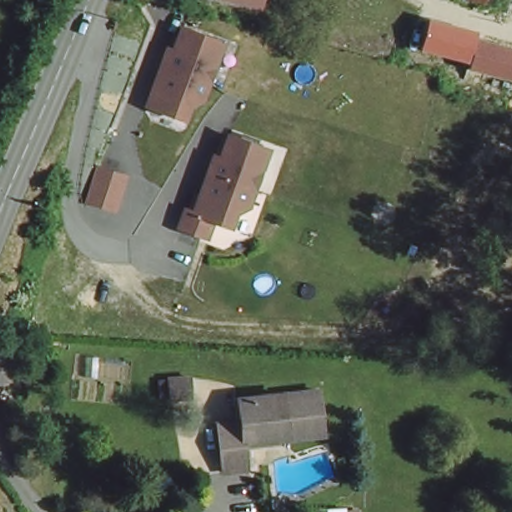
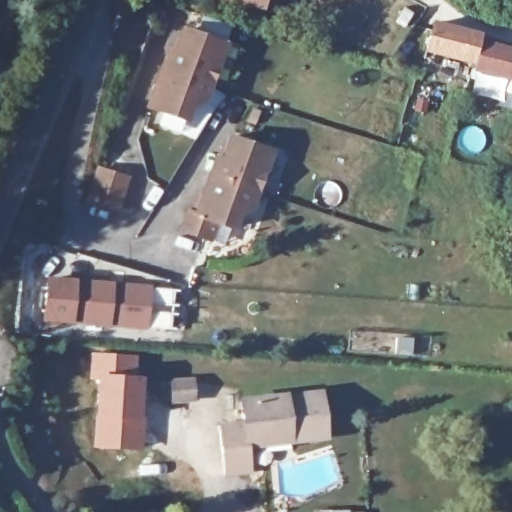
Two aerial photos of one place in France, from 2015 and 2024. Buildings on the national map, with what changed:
unchanged [(255,19),(212,7),(214,0),(260,0),(255,19)]
unchanged [(482,34),(481,44),(512,51),(512,81),(471,73),(473,67),(423,53),(430,23),(482,34)]
unchanged [(217,43),(197,98),(185,104),(180,117),(143,104),(163,48),(170,51),(178,28),(217,43)]
unchanged [(249,207),(236,211),(231,225),(214,219),(208,237),(180,228),(186,209),(195,212),(215,155),(222,158),(230,135),(270,149),(249,207)]
new [(93,188),(98,172),(126,180),(115,215),(88,206),(93,188)]
new [(44,320),(47,278),(149,288),(144,328),(44,320)]
new [(90,352),(139,355),(138,375),(145,375),(144,451),(92,448),(96,381),(88,380),(90,352)]
unchanged [(192,374),(192,404),(168,404),(169,375),(192,374)]
unchanged [(221,479),(219,455),(217,428),(242,425),(240,404),(319,397),(323,442),(287,446),(244,450),(245,457),(248,477),(221,479)]

